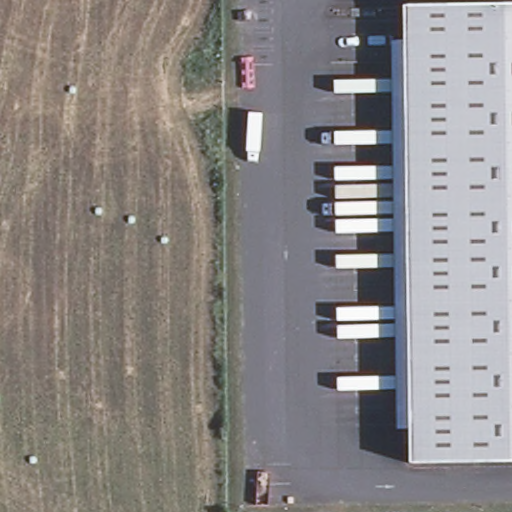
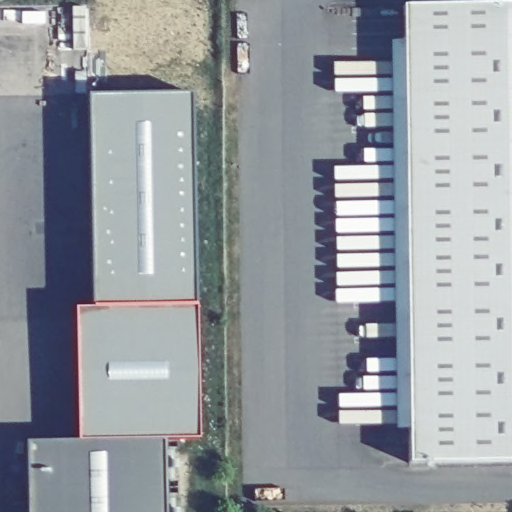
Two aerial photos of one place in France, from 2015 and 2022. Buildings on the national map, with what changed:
unchanged [(512,465),(410,466),(410,433),(405,44),(404,36),(404,10),(512,9),(512,465)]
new [(80,306),(97,306),(92,94),(193,91),(203,437),(162,441),(81,441),(80,306)]
new [(25,443),(162,441),(164,512),(26,512),(25,443)]

